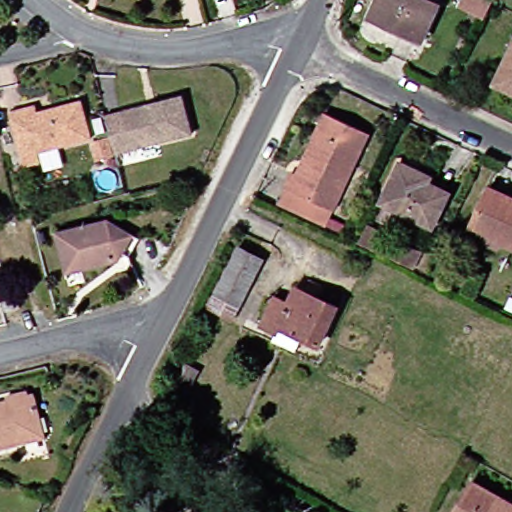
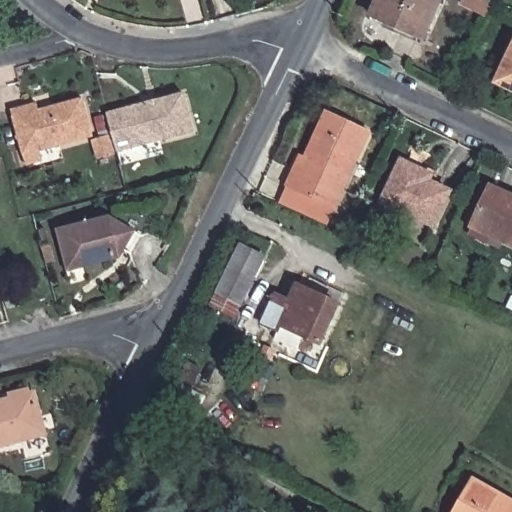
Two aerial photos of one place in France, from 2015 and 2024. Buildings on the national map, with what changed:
unchanged [(397,27),(372,16),(380,0),(432,0),(440,4),(426,35),(424,40),(397,27)]
unchanged [(495,0),(487,16),(474,10),(480,0),(494,0),(495,0)]
unchanged [(512,55),(512,89),(499,82),(512,55)]
unchanged [(107,112),(183,92),(193,130),(117,150),(107,112)]
unchanged [(31,165),(28,156),(17,112),(33,108),(43,105),(45,112),(88,100),(99,138),(46,151),(48,161),(31,165)]
unchanged [(281,201),(293,174),(298,175),(319,132),(327,115),(370,135),(329,224),(281,201)]
unchanged [(434,226),(384,201),(403,161),(426,172),(432,175),(430,181),(451,191),(434,226)]
unchanged [(492,187),(512,196),(512,245),(473,227),(492,187)]
unchanged [(140,231),(124,258),(72,273),(61,231),(113,216),(140,231)]
unchanged [(367,242),(377,224),(394,232),(385,251),(367,242)]
unchanged [(395,255),(402,240),(427,252),(420,267),(395,255)]
unchanged [(270,258),(241,316),(218,305),(248,247),(270,258)]
unchanged [(344,306),(326,343),(285,325),(283,331),(268,324),(281,295),(297,302),(303,287),(344,306)]
unchanged [(511,291),(512,291),(512,313),(503,309),(511,291)]
unchanged [(193,402),(179,396),(196,363),(210,370),(193,402)]
unchanged [(0,446),(0,403),(32,395),(43,436),(0,446)]
unchanged [(512,502),(512,512),(457,512),(475,481),(512,502)]

